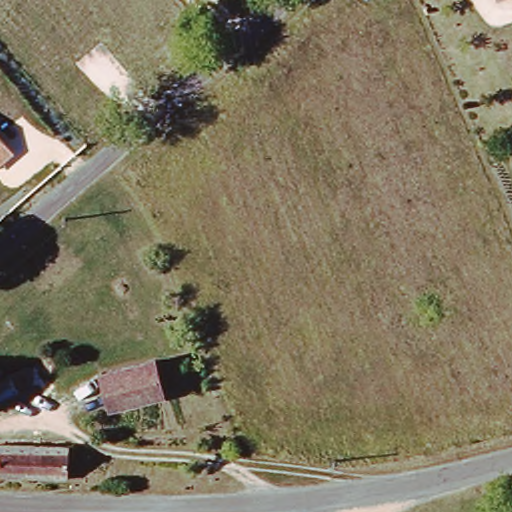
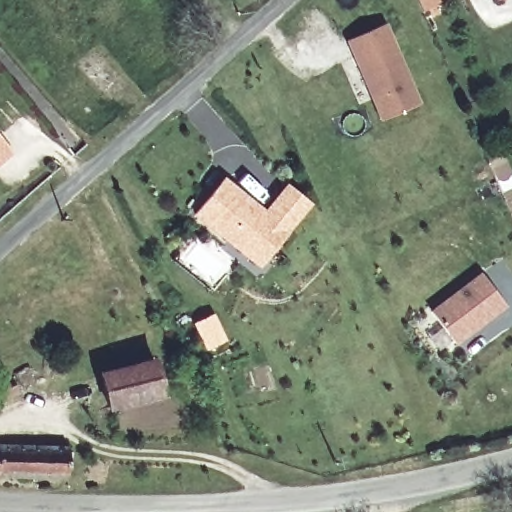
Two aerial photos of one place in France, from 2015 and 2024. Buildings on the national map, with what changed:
new [(422,102),(381,119),(348,39),(389,22),(422,102)]
unchanged [(0,152),(0,134),(9,144),(0,152)]
new [(222,176),(264,209),(286,183),(311,204),(260,269),(192,216),(222,176)]
new [(507,307),(458,346),(430,311),(480,272),(507,307)]
new [(212,315),(225,341),(210,349),(196,322),(212,315)]
unchanged [(155,366),(161,399),(112,410),(105,377),(155,366)]
unchanged [(17,392),(0,401),(0,381),(8,376),(17,392)]
unchanged [(68,479),(0,476),(0,444),(73,445),(68,479)]

